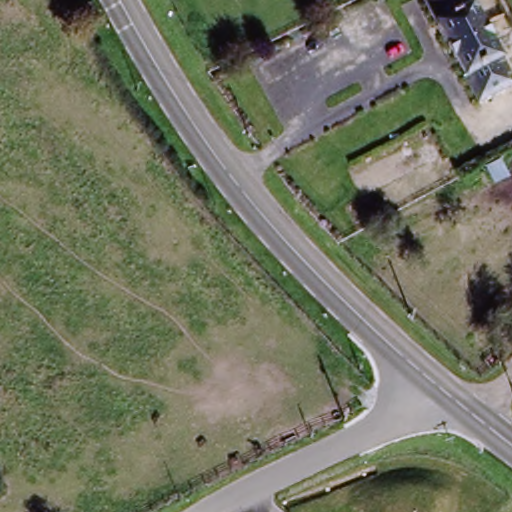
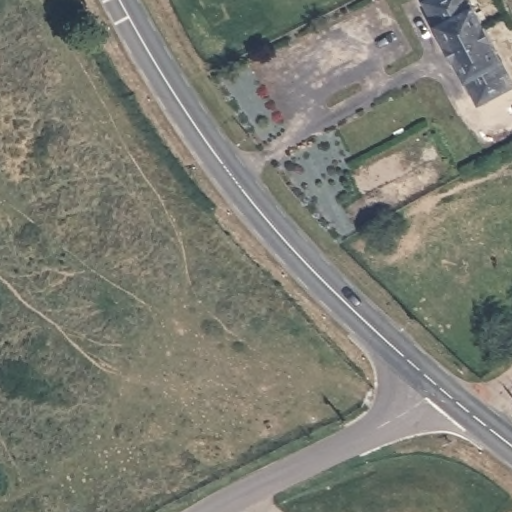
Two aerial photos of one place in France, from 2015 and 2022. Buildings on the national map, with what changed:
unchanged [(424,11),(443,0),(463,0),(472,16),(437,35),(424,11)]
unchanged [(479,110),(468,89),(437,35),(472,16),(502,70),(512,87),(512,92),(479,110)]

